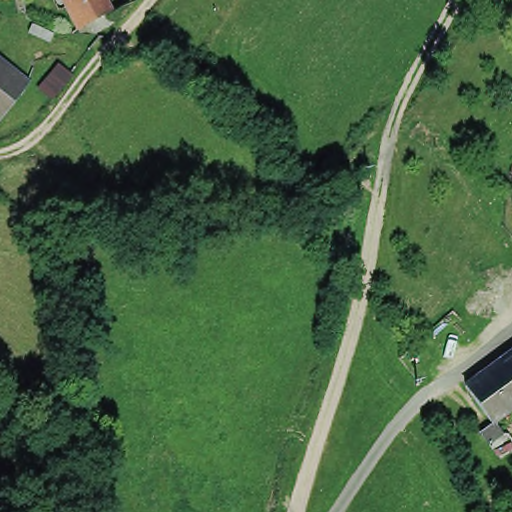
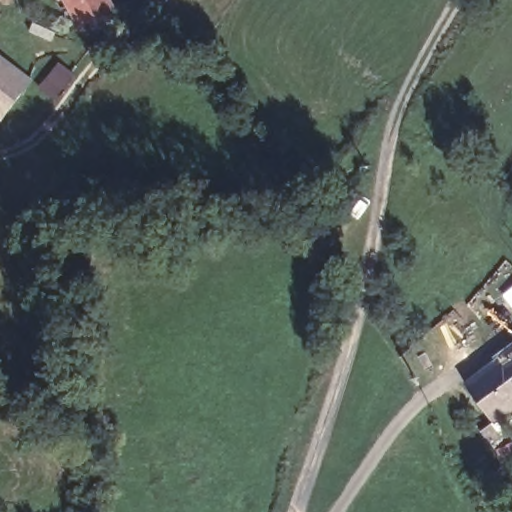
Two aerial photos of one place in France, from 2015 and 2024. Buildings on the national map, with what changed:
unchanged [(113,5),(79,24),(66,0),(110,0),(113,5)]
unchanged [(3,5),(0,11),(0,3),(3,5)]
unchanged [(28,77),(0,116),(0,57),(28,77)]
unchanged [(512,354),(512,370),(505,360),(512,354)]
unchanged [(505,360),(512,370),(512,412),(499,422),(509,436),(495,447),(484,432),(497,423),(470,386),(505,360)]

